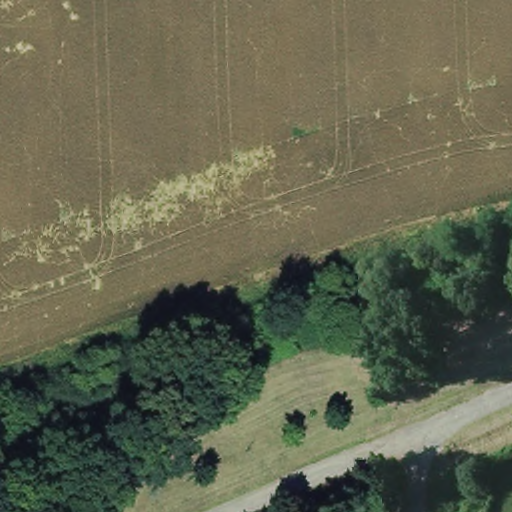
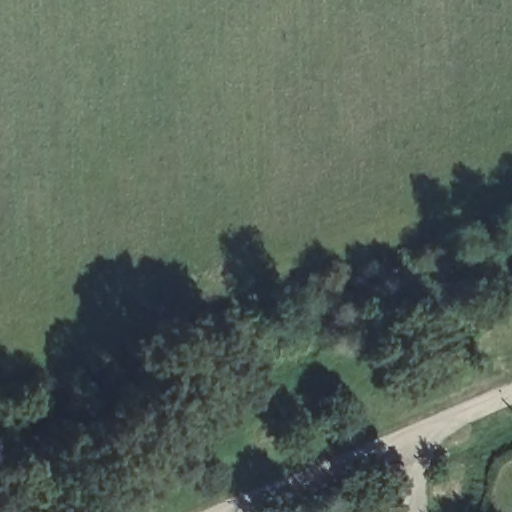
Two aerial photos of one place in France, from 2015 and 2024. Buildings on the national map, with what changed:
unchanged [(329,307),(319,283),(341,272),(351,297),(329,307)]

